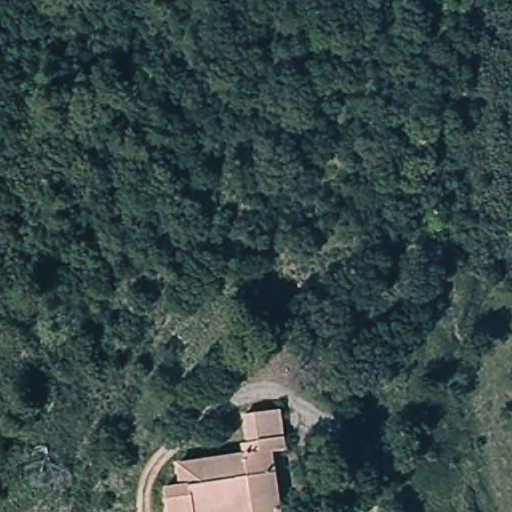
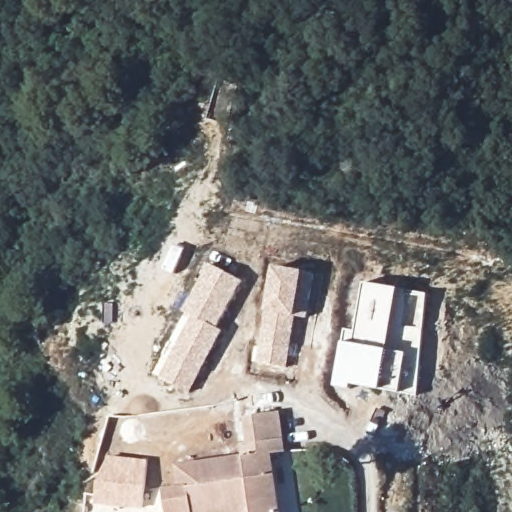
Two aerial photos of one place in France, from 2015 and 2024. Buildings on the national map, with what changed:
new [(161,377),(193,316),(184,311),(211,264),(243,281),(218,328),(223,332),(191,393),(161,377)]
new [(306,319),(296,317),(288,367),(256,363),(265,311),(274,266),(303,271),(314,273),(306,319)]
new [(351,383),(351,388),(334,386),(343,342),(345,330),(356,332),(365,283),(400,288),(388,349),(408,352),(401,394),(351,383)]
unchanged [(261,414),(283,411),(290,451),(275,456),(282,512),(161,512),(157,491),(173,487),(171,466),(238,455),(233,419),(241,407),(256,404),(261,414)]
new [(148,460),(143,510),(96,504),(98,479),(110,457),(148,460)]

